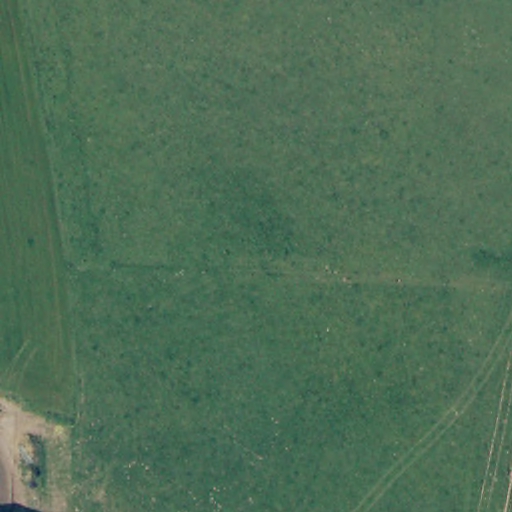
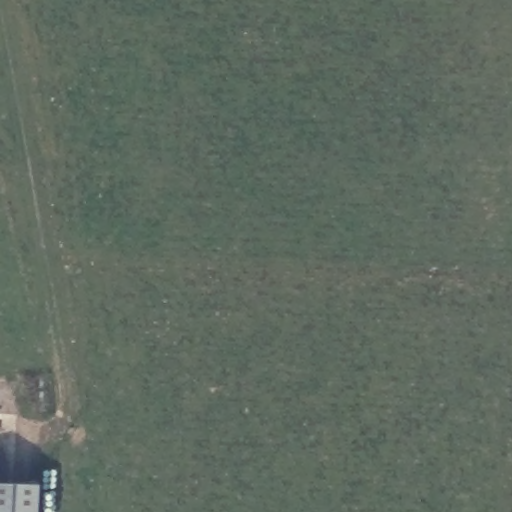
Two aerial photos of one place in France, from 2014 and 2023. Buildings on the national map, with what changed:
new [(42,483),(40,512),(0,512),(0,481),(42,483)]

